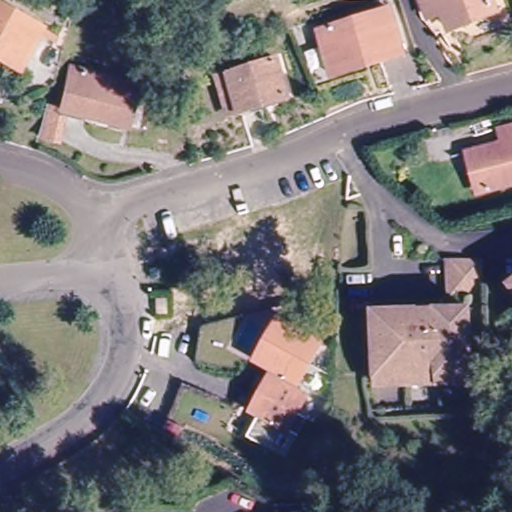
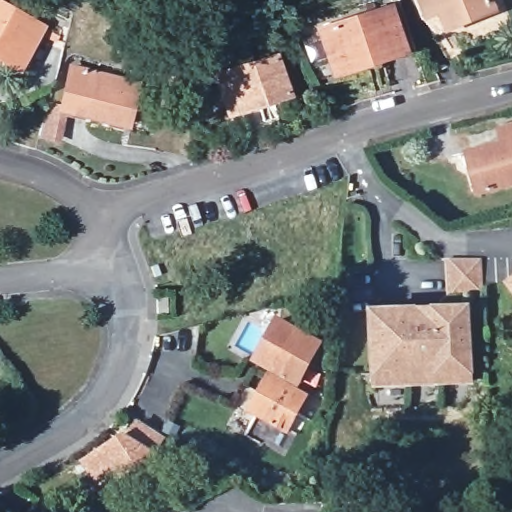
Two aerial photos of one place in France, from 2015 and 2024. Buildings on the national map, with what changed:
unchanged [(496,12),(449,28),(442,8),(427,14),(422,0),(492,0),(496,12)]
unchanged [(15,80),(0,71),(0,5),(42,30),(15,80)]
unchanged [(333,79),(330,68),(321,32),(390,16),(399,53),(401,64),(333,79)]
unchanged [(209,83),(221,78),(242,69),(268,58),(284,97),(237,117),(225,122),(209,83)]
unchanged [(53,112),(64,69),(99,78),(138,88),(135,101),(128,131),(60,114),(55,138),(33,133),(38,108),(39,108),(53,112)]
unchanged [(461,167),(469,165),(465,151),(496,143),(492,127),(512,122),(512,186),(475,194),(472,178),(465,180),(461,167)]
unchanged [(441,308),(439,269),(478,269),(478,305),(470,306),(470,384),(370,387),(364,311),(441,308)]
unchanged [(252,404),(247,401),(264,367),(274,372),(278,366),(250,352),(271,310),(312,330),(288,379),(299,384),(282,418),(291,422),(280,445),(241,426),(252,404)]
new [(149,429),(154,425),(164,438),(159,443),(163,447),(138,467),(134,462),(103,485),(105,488),(101,492),(79,464),(139,417),(149,429)]

